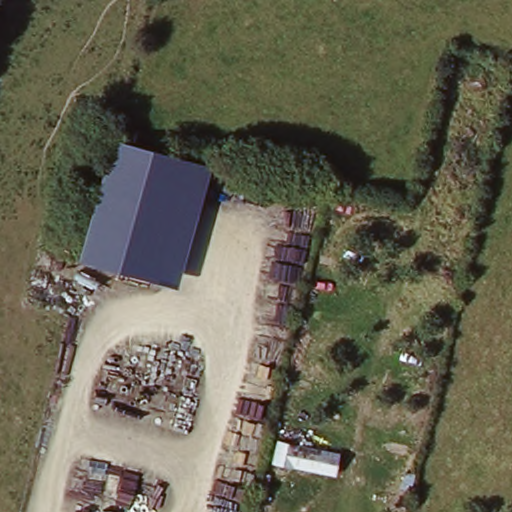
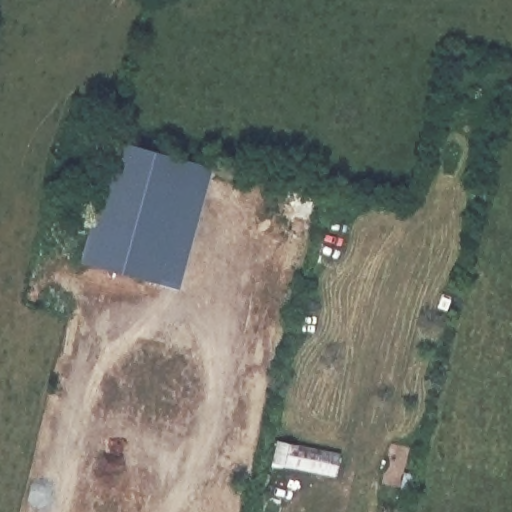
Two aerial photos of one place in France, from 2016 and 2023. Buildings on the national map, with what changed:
unchanged [(191,165),(158,287),(81,266),(114,144),(191,165)]
unchanged [(340,457),(337,478),(275,467),(278,446),(340,457)]
unchanged [(407,472),(412,473),(411,488),(402,487),(407,472)]

